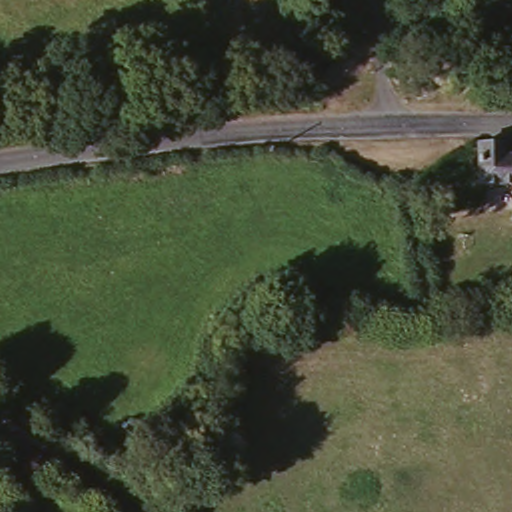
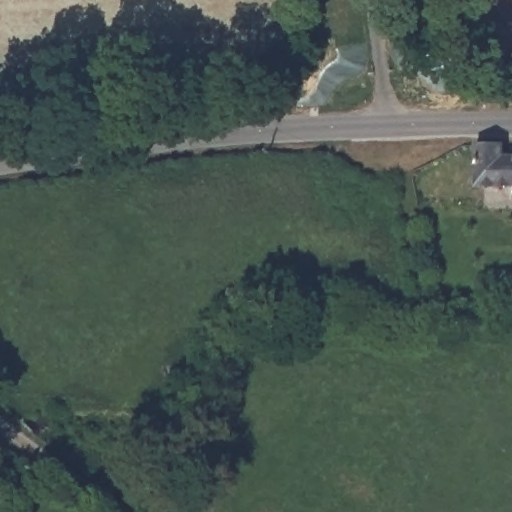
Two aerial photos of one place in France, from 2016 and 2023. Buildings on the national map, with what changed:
unchanged [(512,154),(512,189),(476,189),(477,142),(501,141),(502,154),(512,154)]

